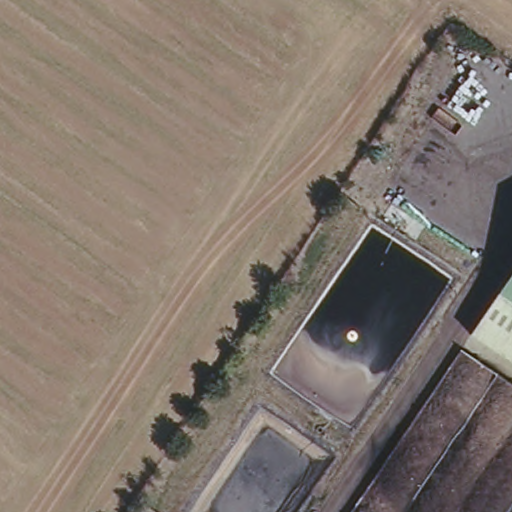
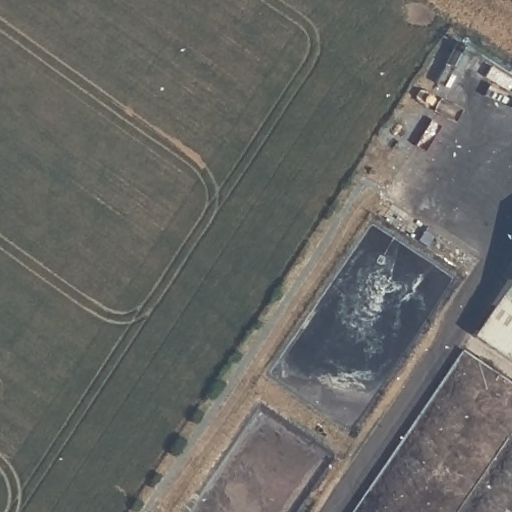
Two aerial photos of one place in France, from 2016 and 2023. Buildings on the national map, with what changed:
unchanged [(512,275),(512,358),(472,331),(512,275)]

